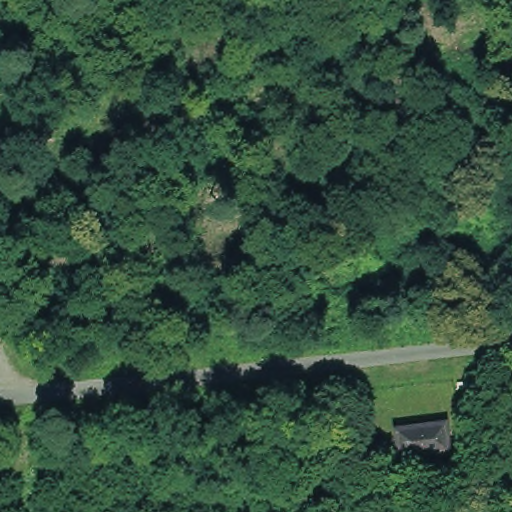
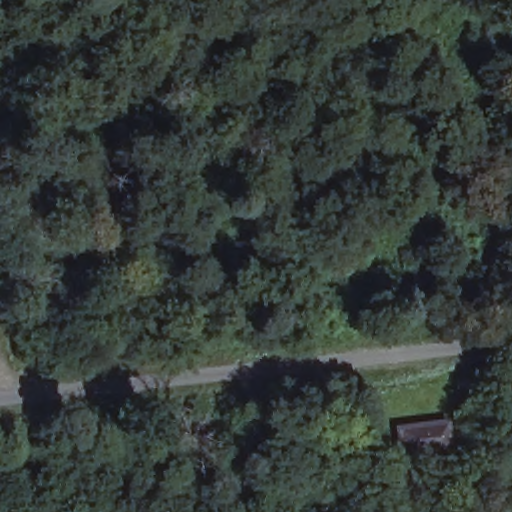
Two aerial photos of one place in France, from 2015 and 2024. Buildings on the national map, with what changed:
unchanged [(449,452),(400,460),(397,425),(450,416),(449,452)]

